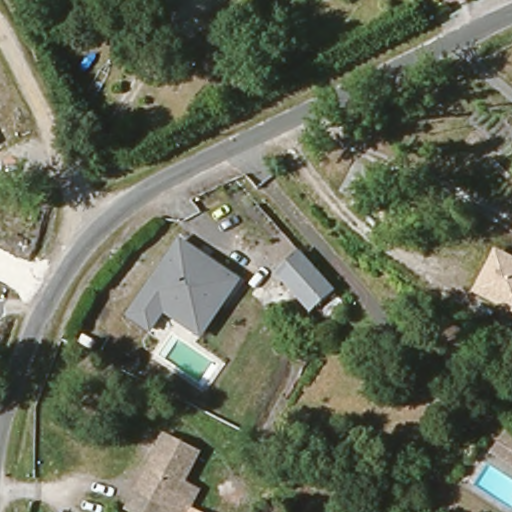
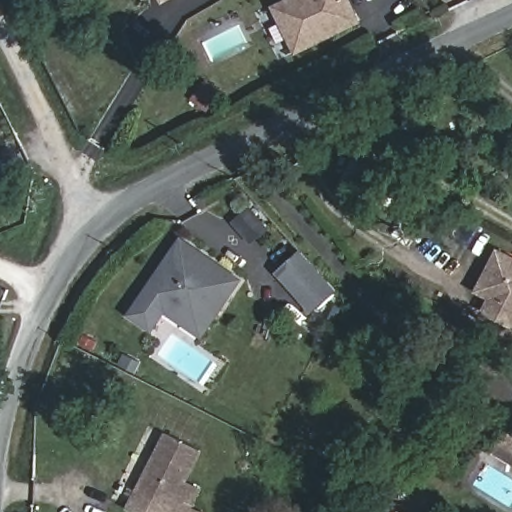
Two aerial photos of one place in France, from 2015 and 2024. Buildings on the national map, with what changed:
new [(282,22),(297,15),(291,1),(293,0),(347,0),(358,22),(330,36),(318,42),(297,52),(282,22)]
new [(351,162),(367,172),(352,203),(336,195),(351,162)]
unchanged [(244,278),(203,340),(165,314),(153,331),(129,315),(180,237),(244,278)]
unchanged [(474,292),(497,249),(512,256),(512,312),(474,292)]
unchanged [(335,290),(312,312),(278,276),(302,253),(335,290)]
unchanged [(512,432),(512,468),(488,455),(506,428),(512,432)]
unchanged [(137,505),(142,491),(168,435),(202,451),(187,482),(202,488),(191,512),(151,512),(137,505)]

